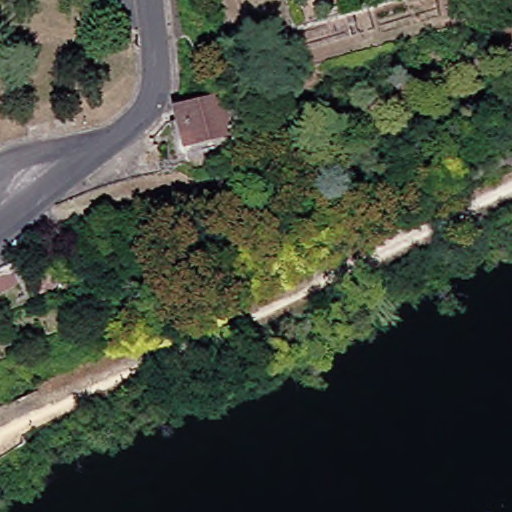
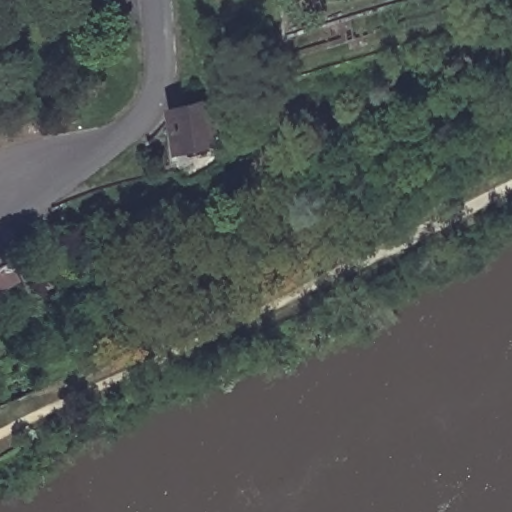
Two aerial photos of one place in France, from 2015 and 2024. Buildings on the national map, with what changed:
unchanged [(373,30),(353,35),(347,14),(367,8),(373,30)]
unchanged [(229,97),(238,135),(213,141),(214,145),(190,151),(183,122),(181,110),(225,98),(229,97)]

